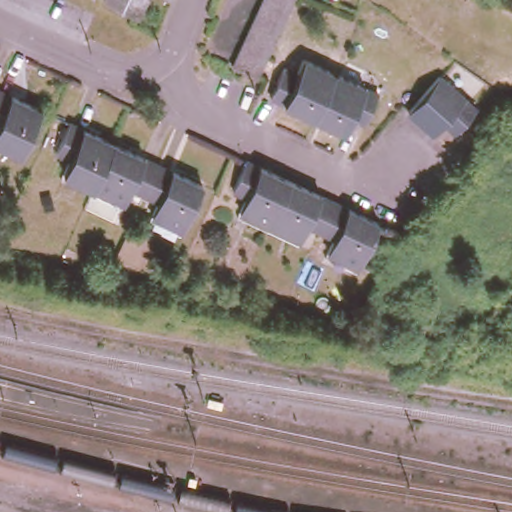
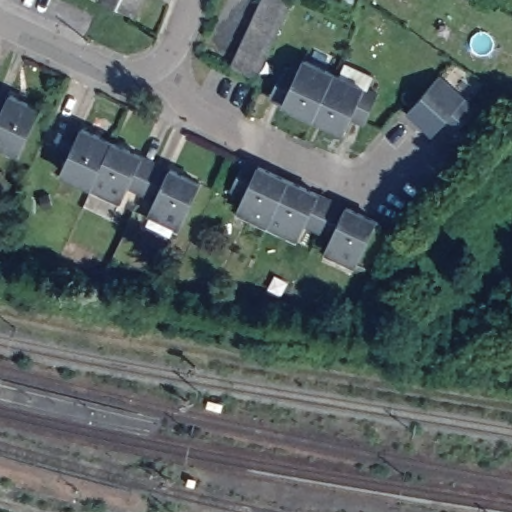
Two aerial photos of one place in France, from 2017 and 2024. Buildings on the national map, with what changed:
unchanged [(128,10),(109,0),(133,0),(128,10)]
unchanged [(241,41),(245,31),(251,19),(256,7),(259,0),(288,0),(285,6),(280,18),(275,29),(269,42),(265,52),(260,64),(254,75),(230,65),(235,53),(241,41)]
unchanged [(269,94),(282,64),(296,70),(302,56),(323,66),(303,110),(269,94)]
unchanged [(365,120),(355,115),(353,114),(345,129),(303,110),(323,66),(368,86),(377,90),(365,120)]
unchanged [(438,115),(425,127),(405,107),(438,71),(473,105),(458,120),(451,127),(438,115)]
unchanged [(20,152),(0,142),(0,89),(41,109),(20,152)]
unchanged [(61,171),(67,157),(55,150),(67,122),(126,147),(105,192),(61,171)]
unchanged [(170,221),(150,212),(156,197),(128,184),(121,199),(105,192),(126,147),(191,177),(200,181),(179,226),(170,221)]
unchanged [(260,165),(321,192),(328,195),(340,201),(347,205),(378,217),(357,266),(325,250),(330,237),(305,226),(298,238),(238,209),(243,196),(232,190),(246,160),(260,165)]

